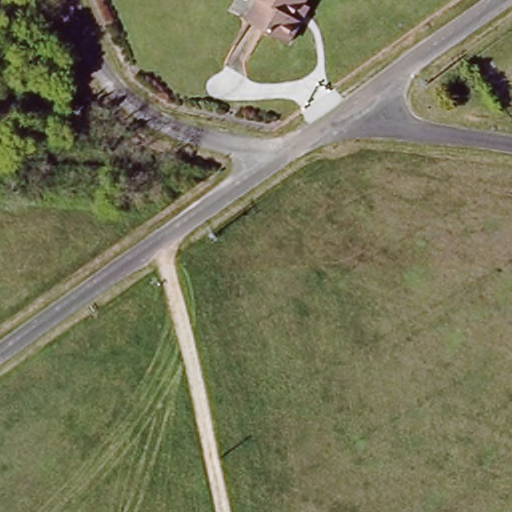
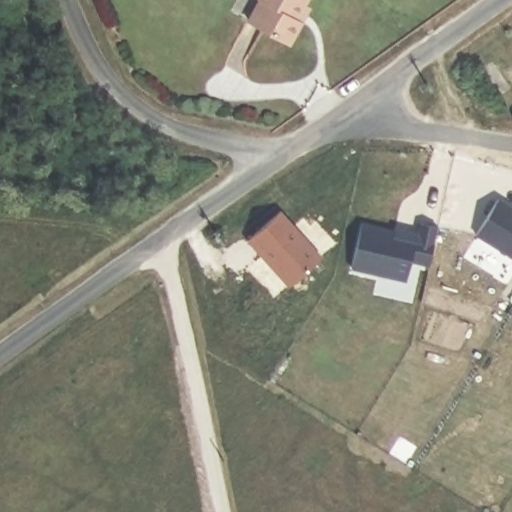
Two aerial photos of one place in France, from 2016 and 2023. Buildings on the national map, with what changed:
unchanged [(291,42),(251,18),(261,0),(307,0),(306,2),(311,5),(303,20),(291,42)]
new [(498,197),(512,206),(512,258),(474,235),(498,197)]
new [(288,287),(248,240),(281,209),(322,257),(288,287)]
new [(429,267),(409,262),(406,282),(351,268),(359,224),(392,232),(394,227),(418,232),(419,222),(439,227),(429,267)]

